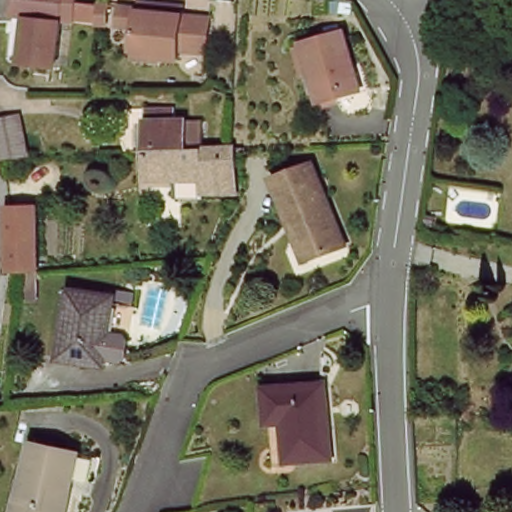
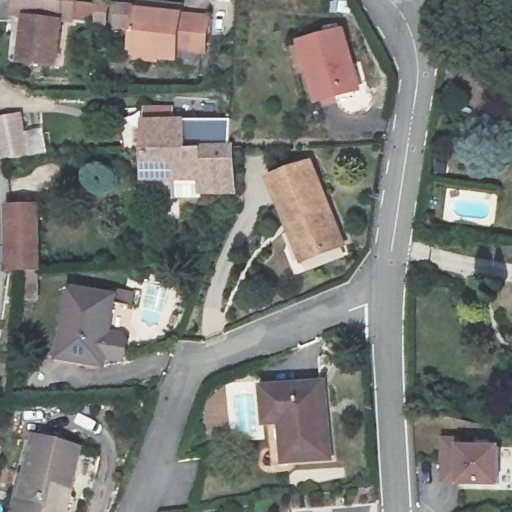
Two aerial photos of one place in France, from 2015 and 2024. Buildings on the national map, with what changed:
unchanged [(56,63),(22,60),(25,16),(8,15),(10,0),(75,0),(74,6),(62,4),(56,63)]
unchanged [(133,59),(135,49),(138,26),(116,24),(119,5),(141,9),(208,17),(203,56),(181,52),(180,60),(161,58),(160,62),(133,59)]
unchanged [(301,42),(342,30),(359,86),(317,97),(301,42)]
unchanged [(0,119),(18,117),(32,156),(7,157),(4,157),(0,139),(0,119)]
unchanged [(150,120),(192,120),(193,149),(151,150),(150,120)]
unchanged [(193,149),(239,147),(241,192),(211,194),(211,181),(153,180),(151,150),(193,149)]
unchanged [(286,217),(273,180),(319,165),(346,246),(315,256),(301,260),(286,217)]
unchanged [(11,209),(42,209),(42,272),(13,273),(11,209)]
unchanged [(131,353),(106,350),(104,364),(65,358),(70,326),(62,325),(68,289),(115,297),(113,310),(136,313),(131,353)]
unchanged [(284,418),(271,419),(269,389),(325,385),(330,455),(286,456),(284,418)]
new [(463,438),(459,445),(501,446),(501,487),(458,485),(442,485),(442,438),(463,438)]
unchanged [(81,450),(67,512),(21,512),(38,439),(81,450)]

